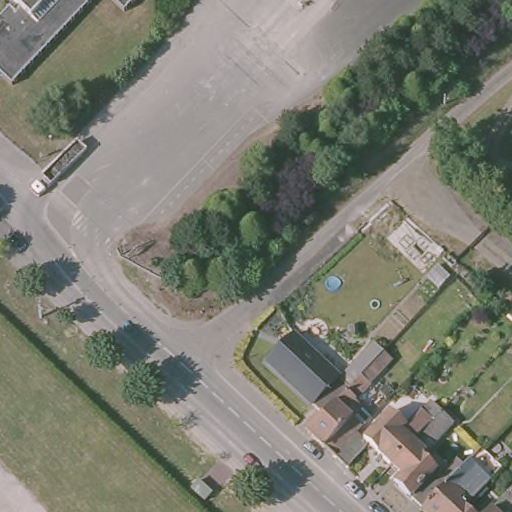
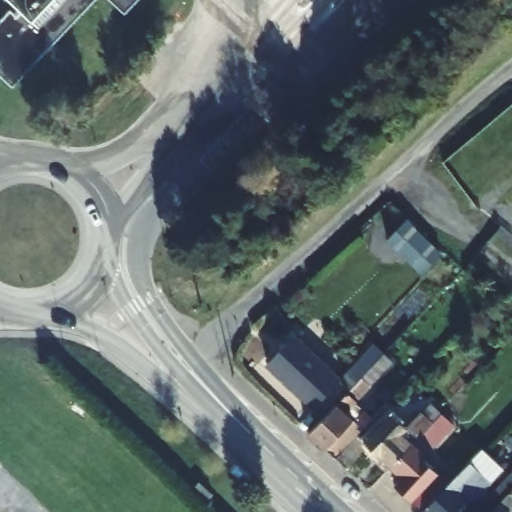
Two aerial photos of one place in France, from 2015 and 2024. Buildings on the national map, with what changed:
unchanged [(0,72),(0,15),(9,4),(12,7),(18,1),(17,0),(92,0),(12,83),(0,72)]
unchanged [(114,0),(130,0),(123,8),(114,0)]
new [(442,252),(422,273),(384,240),(406,218),(442,252)]
unchanged [(343,376),(373,344),(394,362),(369,386),(361,379),(347,394),(295,346),(302,339),(343,376)]
unchanged [(270,372),(295,346),(347,394),(322,421),(270,372)]
unchanged [(347,394),(361,379),(369,386),(355,403),(362,411),(352,422),(364,433),(337,463),(307,436),(322,421),(347,394)]
unchanged [(383,389),(392,395),(387,402),(378,395),(383,389)]
unchanged [(427,464),(445,480),(458,466),(465,472),(428,512),(416,512),(395,491),(400,484),(390,473),(410,451),(424,437),(419,431),(425,427),(422,424),(432,413),(440,420),(444,416),(457,429),(427,464)]
unchanged [(365,449),(390,423),(405,436),(400,442),(410,451),(390,473),(365,449)]
unchanged [(470,467),(490,487),(466,512),(428,512),(465,472),(470,467)]
unchanged [(512,496),(512,512),(497,512),(512,496)]

